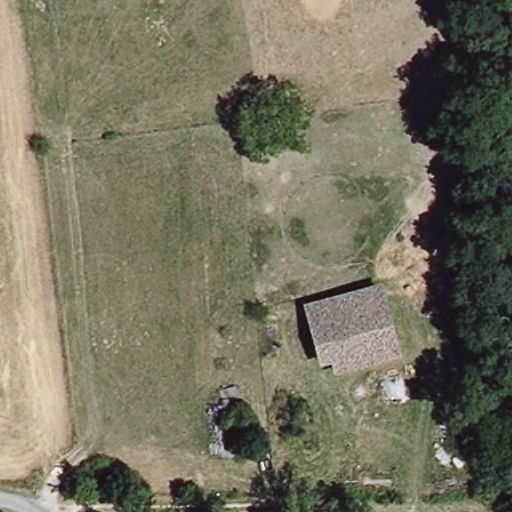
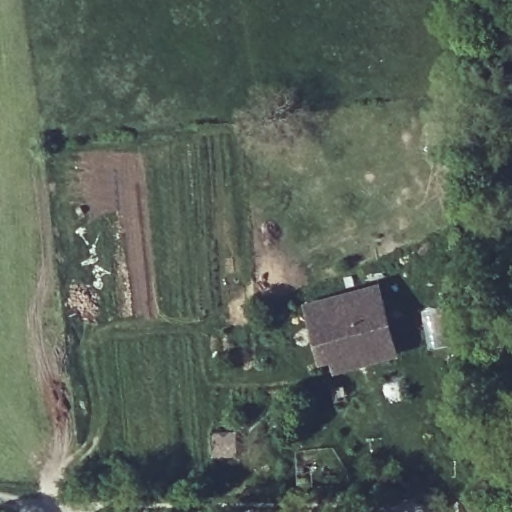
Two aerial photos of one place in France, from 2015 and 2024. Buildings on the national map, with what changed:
unchanged [(397,351),(341,371),(337,360),(325,365),(306,312),(374,287),(397,351)]

